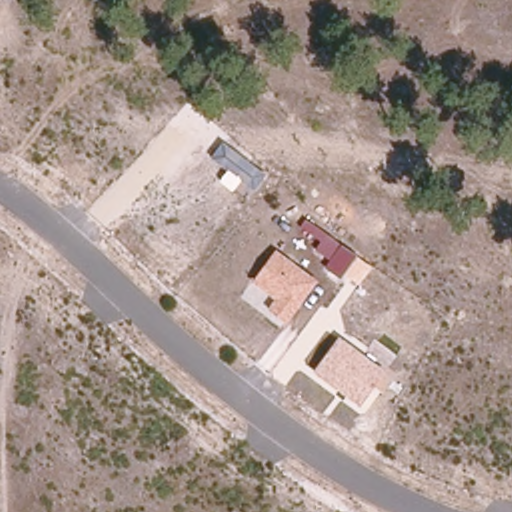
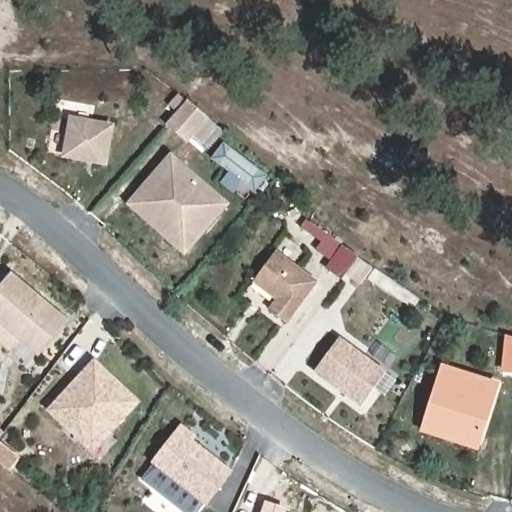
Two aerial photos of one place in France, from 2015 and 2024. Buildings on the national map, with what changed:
new [(191,102),(210,118),(190,140),(171,124),(191,102)]
new [(61,159),(69,117),(115,124),(108,165),(61,159)]
unchanged [(254,189),(242,180),(234,192),(220,181),(227,170),(211,157),(223,143),(266,175),(254,189)]
new [(171,152),(231,205),(185,256),(126,204),(171,152)]
unchanged [(359,285),(347,276),(343,280),(325,265),(329,259),(315,247),(320,240),(300,223),(305,216),(372,267),(359,285)]
unchanged [(286,323),(268,308),(275,299),(253,280),(276,250),(317,280),(286,323)]
new [(69,318),(41,352),(23,337),(14,349),(0,337),(0,295),(16,274),(69,318)]
unchanged [(360,405),(313,371),(340,337),(386,371),(360,405)]
new [(97,360),(141,400),(111,432),(96,448),(54,409),(58,404),(97,360)]
new [(442,364),(501,383),(480,451),(422,433),(442,364)]
new [(183,424),(198,436),(195,441),(235,470),(208,506),(152,463),(183,424)]
new [(200,512),(183,512),(141,478),(152,463),(206,504),(200,512)]
new [(288,508),(286,512),(261,512),(264,501),(288,508)]

